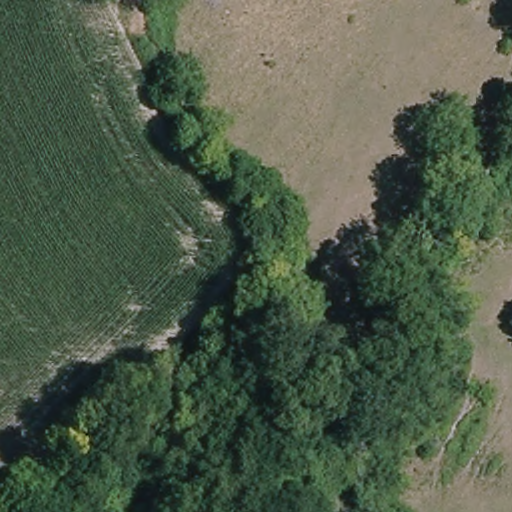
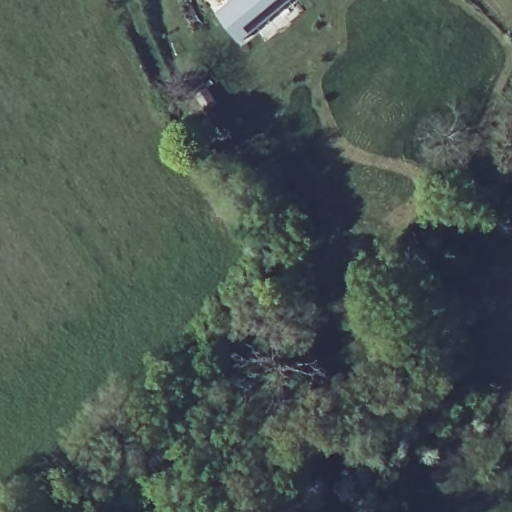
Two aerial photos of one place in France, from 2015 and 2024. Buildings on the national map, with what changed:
new [(286,4),(296,14),(268,41),(257,29),(237,44),(215,16),(235,0),(291,0),(286,4)]

